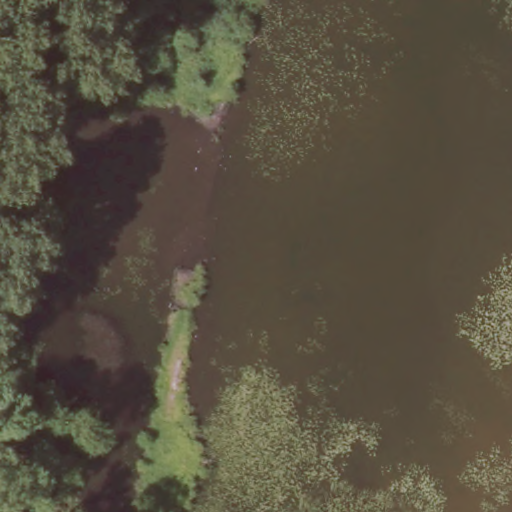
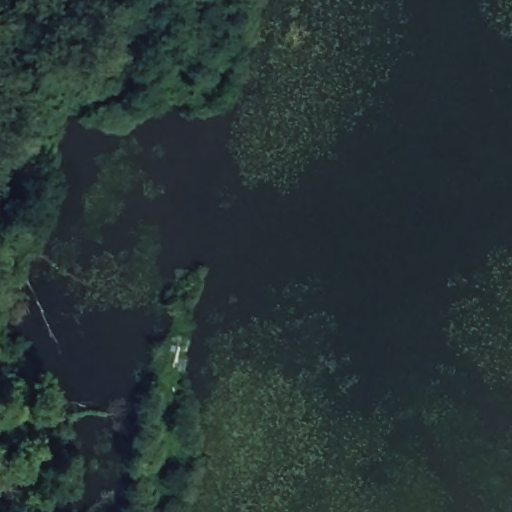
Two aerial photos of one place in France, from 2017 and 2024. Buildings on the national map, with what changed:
unchanged [(35,449),(31,464),(20,461),(24,446),(35,449)]

